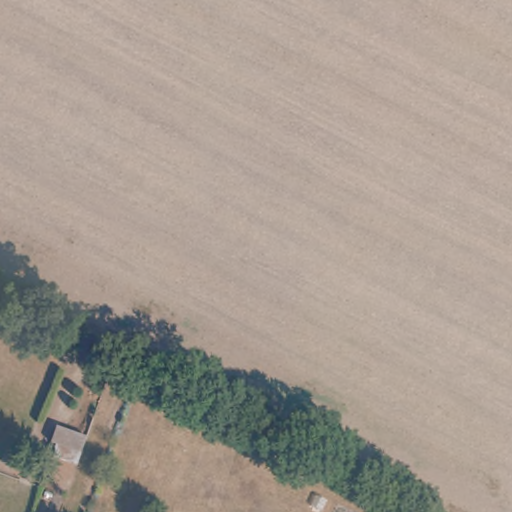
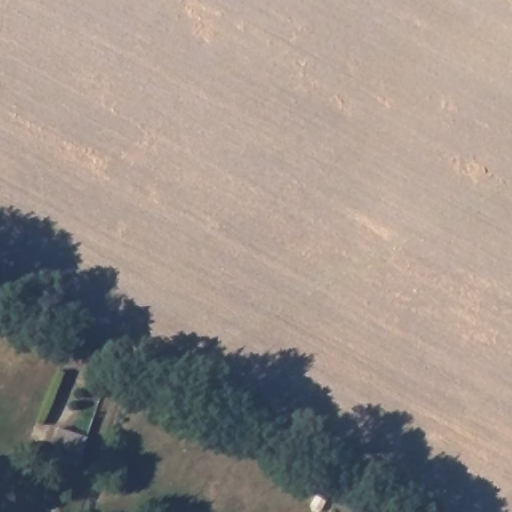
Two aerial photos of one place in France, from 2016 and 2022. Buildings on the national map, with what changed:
unchanged [(59,421),(90,433),(82,455),(60,446),(64,435),(55,432),(59,421)]

